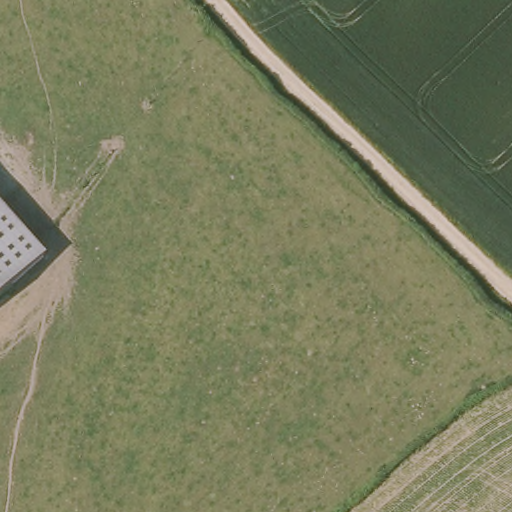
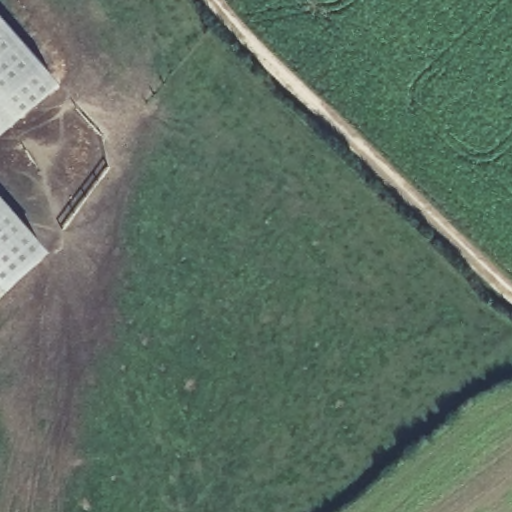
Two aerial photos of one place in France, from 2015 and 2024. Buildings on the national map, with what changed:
new [(57,86),(0,136),(0,20),(57,86)]
unchanged [(47,254),(0,297),(0,200),(47,254)]

